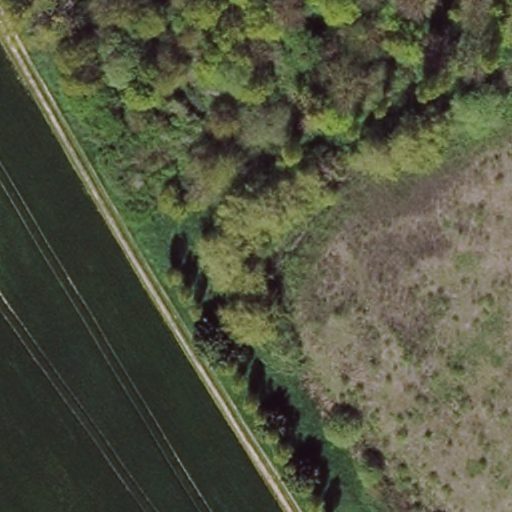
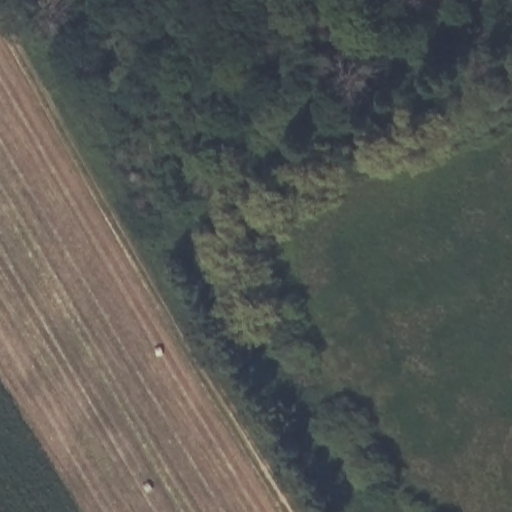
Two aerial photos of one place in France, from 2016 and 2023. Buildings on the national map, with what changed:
[]

